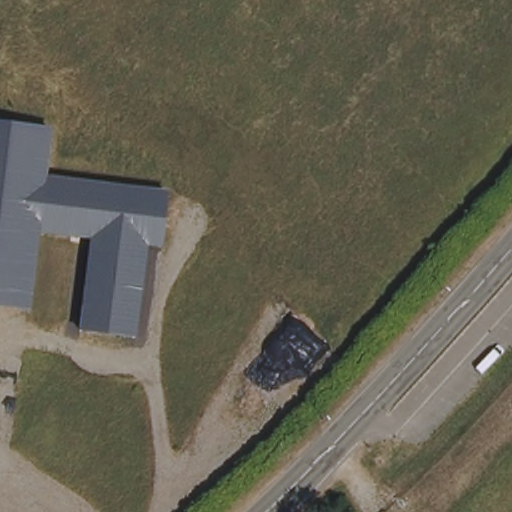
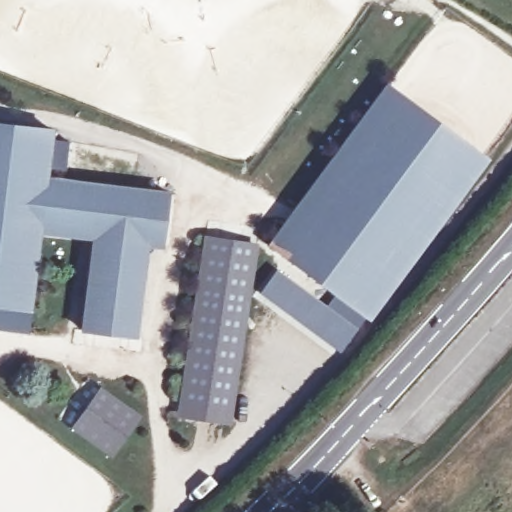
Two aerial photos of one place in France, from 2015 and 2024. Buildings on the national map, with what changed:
new [(386,86),(486,161),(367,321),(267,246),(386,86)]
unchanged [(170,192),(161,249),(148,248),(135,339),(78,330),(90,239),(40,232),(30,313),(0,309),(0,122),(52,128),(46,176),(170,192)]
new [(207,238),(252,245),(228,407),(226,422),(181,415),(183,401),(207,238)]
new [(110,454),(74,427),(61,419),(89,381),(101,389),(138,416),(110,454)]

